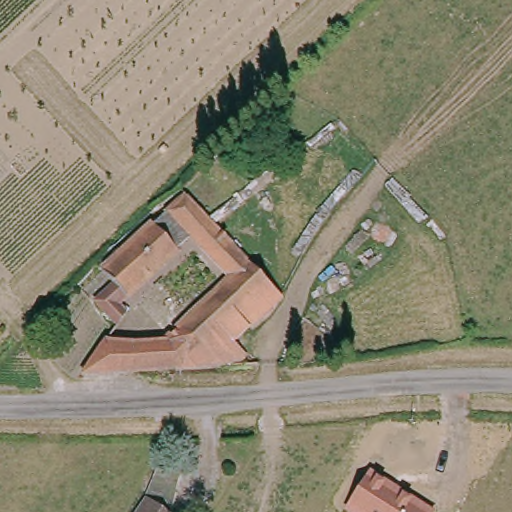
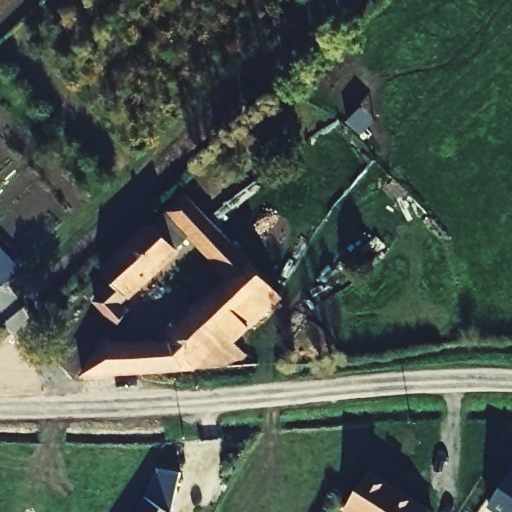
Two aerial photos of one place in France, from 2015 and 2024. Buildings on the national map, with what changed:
unchanged [(234,278),(173,212),(190,195),(284,295),(236,340),(245,349),(246,365),(121,372),(135,340),(170,342),(188,319),(234,278)]
unchanged [(190,239),(120,303),(129,313),(118,325),(96,301),(114,283),(103,271),(166,213),(190,239)]
new [(21,267),(2,286),(0,283),(0,245),(21,267)]
unchanged [(108,338),(135,340),(121,372),(86,375),(108,338)]
unchanged [(435,512),(345,512),(344,512),(370,470),(435,512)]
new [(512,472),(512,512),(506,512),(491,502),(512,472)]
unchanged [(157,480),(168,481),(164,512),(141,512),(147,503),(157,480)]

